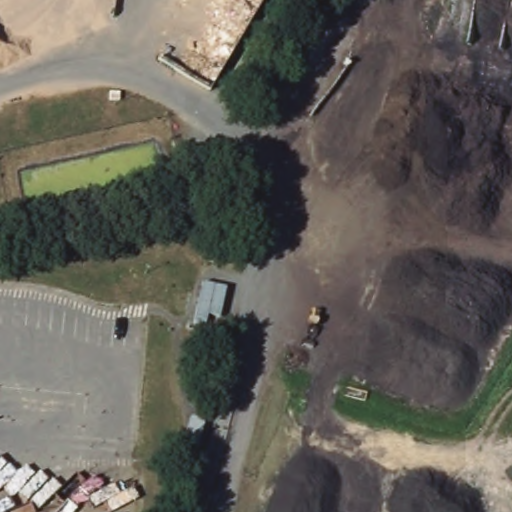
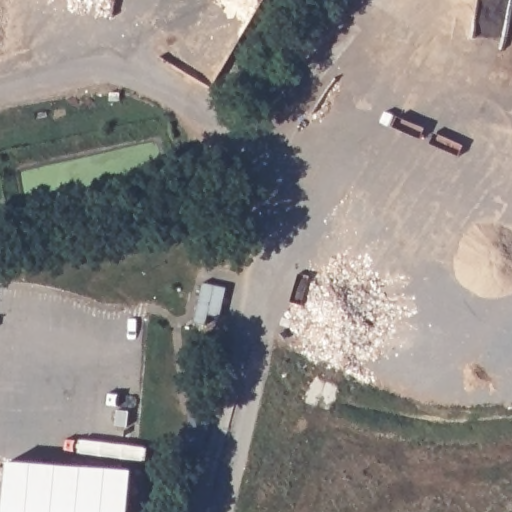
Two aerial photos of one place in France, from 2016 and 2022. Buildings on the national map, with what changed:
new [(132,472),(129,512),(3,512),(6,462),(132,472)]

